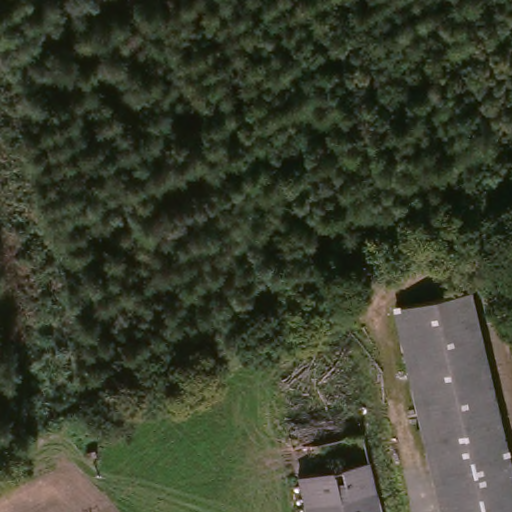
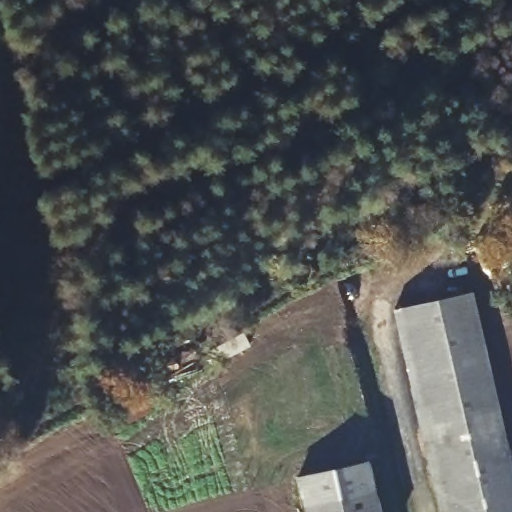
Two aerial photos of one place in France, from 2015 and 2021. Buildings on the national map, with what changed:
unchanged [(395,310),(464,293),(512,490),(512,512),(445,512),(395,310)]
unchanged [(235,350),(223,356),(216,343),(237,333),(253,325),(258,339),(235,350)]
unchanged [(158,400),(129,414),(118,392),(148,377),(158,400)]
unchanged [(375,512),(305,512),(296,475),(363,460),(375,512)]

